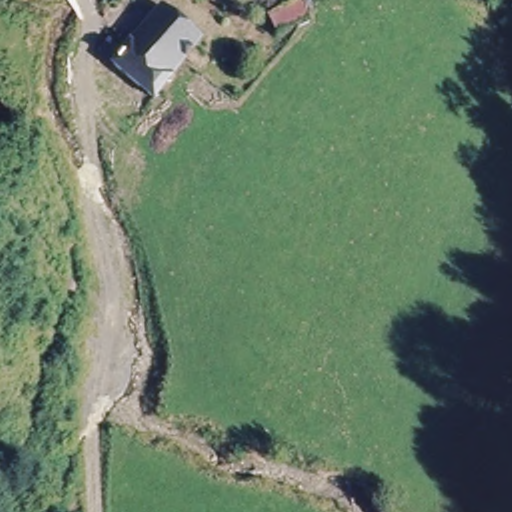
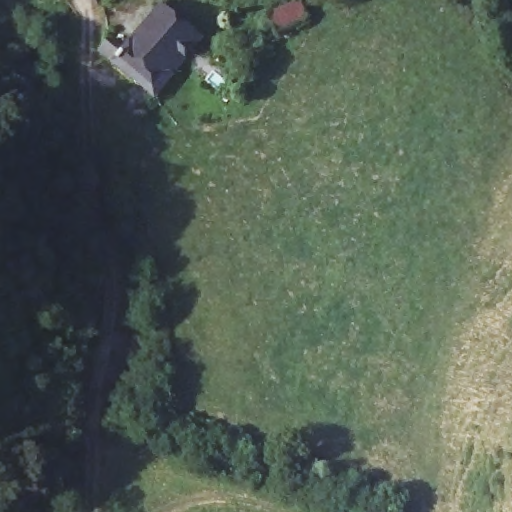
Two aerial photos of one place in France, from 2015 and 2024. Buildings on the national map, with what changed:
unchanged [(112,30),(125,42),(166,1),(202,41),(150,90),(100,44),(112,30)]
unchanged [(267,15),(298,4),(307,24),(272,32),(267,15)]

